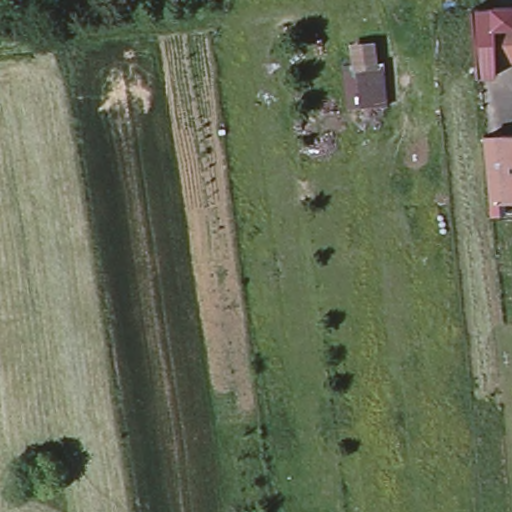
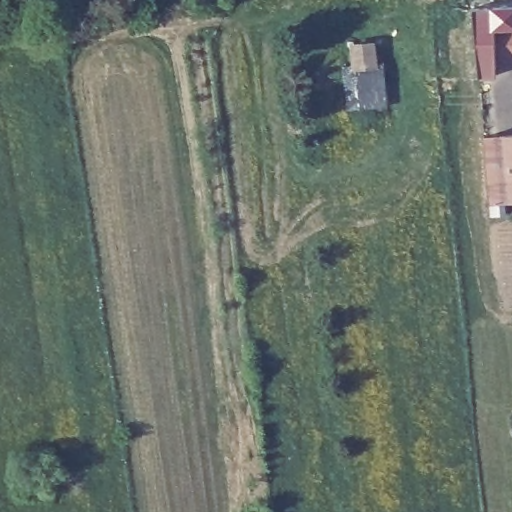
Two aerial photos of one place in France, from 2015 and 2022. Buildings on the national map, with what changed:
unchanged [(480,58),(473,10),(509,8),(512,26),(512,58),(480,58)]
unchanged [(378,38),(381,60),(385,60),(388,104),(348,108),(342,63),(352,62),(349,41),(378,38)]
unchanged [(512,135),(512,198),(508,198),(503,136),(512,135)]
unchanged [(503,136),(508,198),(491,200),(484,138),(503,136)]

